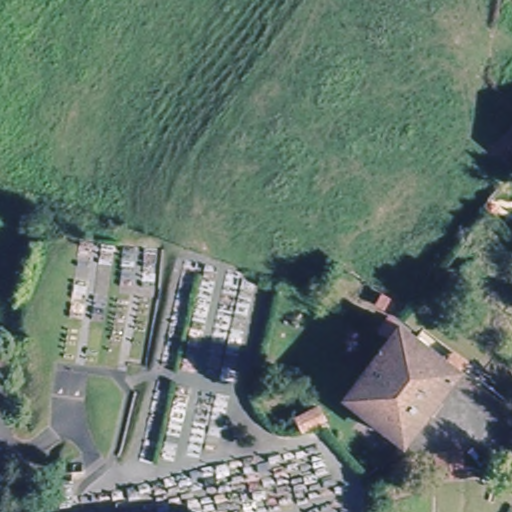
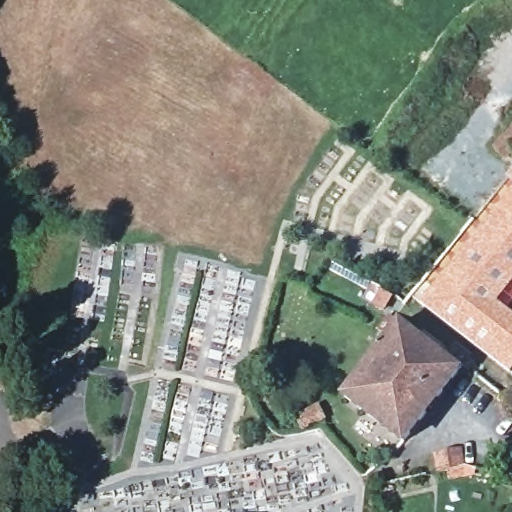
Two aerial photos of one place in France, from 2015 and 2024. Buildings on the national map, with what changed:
unchanged [(505,159),(494,150),(512,129),(512,152),(505,159)]
new [(506,177),(512,169),(512,182),(506,177)]
new [(512,313),(512,372),(511,373),(420,302),(512,188),(512,282),(497,301),(512,313)]
unchanged [(340,402),(385,343),(376,335),(386,322),(442,366),(450,356),(462,366),(455,375),(400,448),(340,402)]
unchanged [(436,455),(462,450),(465,468),(440,473),(436,455)]

